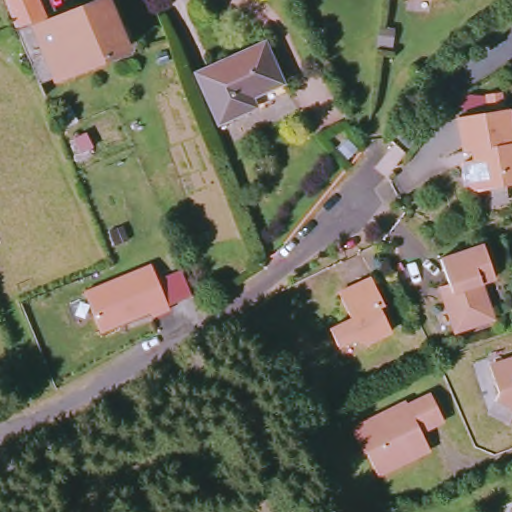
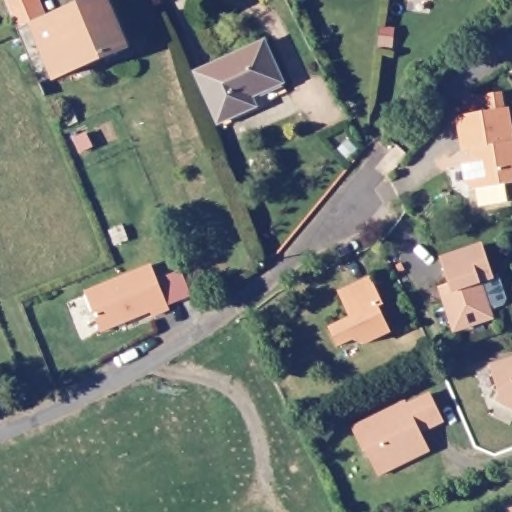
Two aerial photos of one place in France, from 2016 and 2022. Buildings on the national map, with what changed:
unchanged [(20,35),(6,0),(48,0),(56,18),(46,23),(47,26),(102,3),(114,27),(119,25),(130,51),(57,80),(43,86),(34,66),(20,35)]
unchanged [(195,67),(262,37),(281,78),(249,93),(252,102),(218,118),(195,67)]
unchanged [(512,120),(512,181),(475,188),(469,184),(465,160),(475,158),(474,148),(466,150),(460,115),(510,106),(512,120)]
unchanged [(452,286),(443,261),(485,247),(496,280),(483,284),(493,315),(489,323),(463,331),(455,328),(445,296),(442,289),(452,286)]
unchanged [(101,333),(84,291),(150,264),(169,309),(101,333)]
unchanged [(386,307),(381,309),(393,333),(366,346),(357,343),(356,341),(341,348),(332,331),(354,321),(344,301),(341,296),(352,291),(373,280),(386,307)]
unchanged [(503,398),(507,390),(497,363),(512,358),(512,403),(503,398)]
unchanged [(426,457),(383,478),(371,455),(369,456),(357,431),(410,405),(411,408),(434,397),(447,424),(424,435),(433,453),(426,457)]
unchanged [(510,511),(512,510),(512,512),(510,512),(510,511)]

